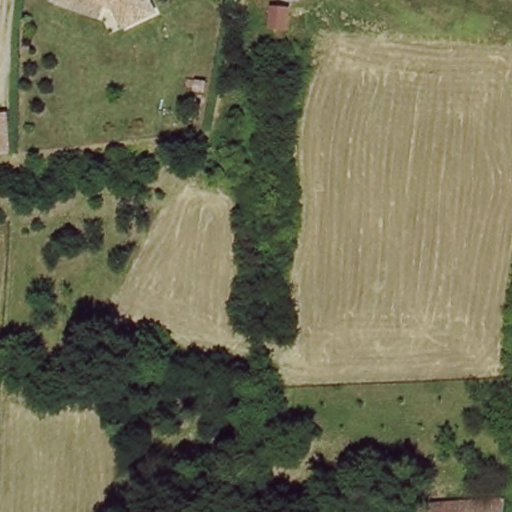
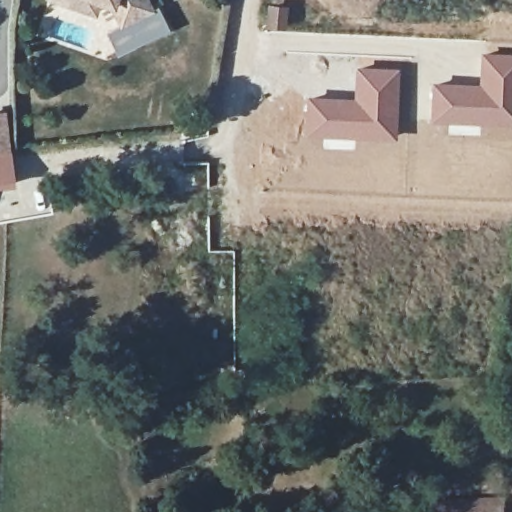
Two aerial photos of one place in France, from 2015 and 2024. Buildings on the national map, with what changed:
unchanged [(88,0),(86,8),(64,1),(62,0),(88,0)]
unchanged [(113,19),(105,3),(104,0),(139,0),(142,5),(113,19)]
unchanged [(269,11),(283,13),(282,31),(268,29),(269,11)]
new [(479,83),(480,51),(512,53),(512,126),(430,123),(430,82),(479,83)]
new [(306,96),(354,97),(355,65),(400,68),(397,141),(355,140),(355,148),(347,148),(347,146),(328,145),(328,139),(304,136),(306,96)]
unchanged [(13,153),(0,154),(0,113),(10,112),(13,153)]
new [(8,154),(11,184),(0,185),(0,154),(8,154)]
unchanged [(413,503),(504,499),(503,512),(413,512),(413,503)]

